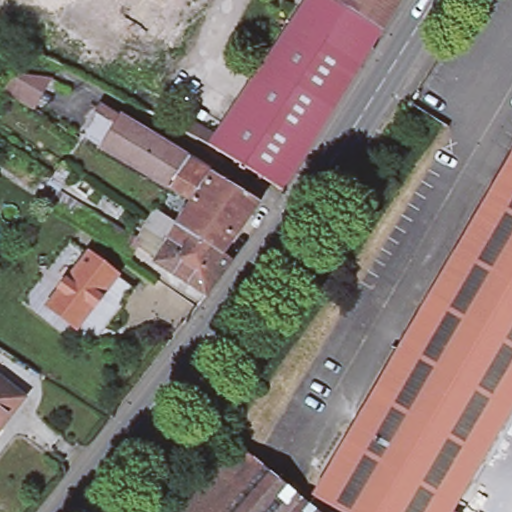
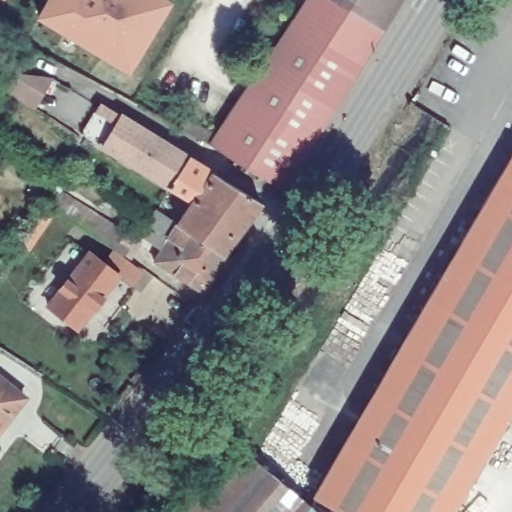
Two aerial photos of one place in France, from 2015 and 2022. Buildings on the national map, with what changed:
new [(35,17),(45,0),(170,0),(171,1),(129,74),(35,17)]
demolished [(110,57),(96,50),(53,23),(67,0),(196,0),(168,45),(124,17),(117,29),(111,26),(107,32),(120,40),(110,57)]
unchanged [(308,0),(399,0),(395,5),(400,7),(397,11),(393,9),(383,26),(386,29),(385,32),(380,29),(371,45),(375,47),(372,51),(368,49),(359,64),(363,66),(360,71),(356,68),(346,84),(350,86),(347,91),(343,89),(334,105),(337,107),(335,111),(331,109),(321,124),(325,126),(322,131),(319,129),(309,145),(312,147),(310,150),(307,148),(297,164),(300,166),(296,172),(293,171),(285,183),(288,185),(290,186),(285,194),(217,154),(221,147),(211,142),(179,126),(185,115),(218,132),(308,0)]
unchanged [(0,31),(0,29),(1,30),(0,31)]
new [(3,88),(13,71),(53,78),(35,109),(3,88)]
unchanged [(171,237),(151,222),(158,210),(180,223),(196,200),(172,186),(128,159),(109,147),(82,131),(93,111),(101,100),(127,117),(146,129),(191,157),(215,171),(263,201),(227,251),(236,257),(208,292),(156,259),(171,237)]
unchanged [(313,495),(512,151),(512,398),(446,512),(338,512),(312,498),(314,495),(313,495)]
unchanged [(68,182),(56,176),(64,164),(75,172),(68,182)]
unchanged [(131,257),(48,207),(61,185),(145,238),(131,257)]
unchanged [(60,308),(51,320),(34,307),(83,245),(100,257),(60,308)]
unchanged [(101,317),(90,332),(60,308),(100,257),(130,281),(101,317)]
unchanged [(0,423),(0,379),(21,396),(0,423)]
unchanged [(307,506),(315,512),(209,512),(252,460),(307,506)]
unchanged [(338,512),(315,512),(307,506),(312,498),(338,512)]

